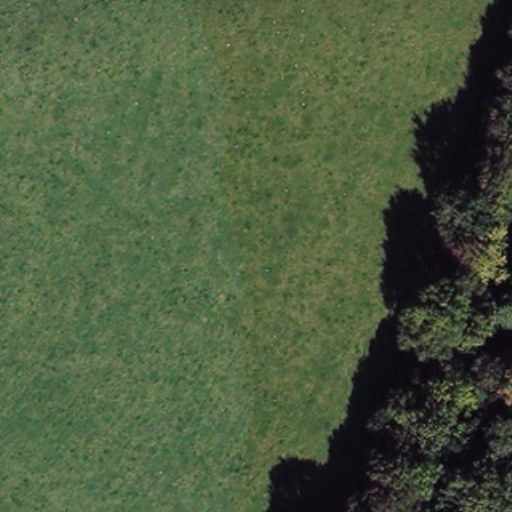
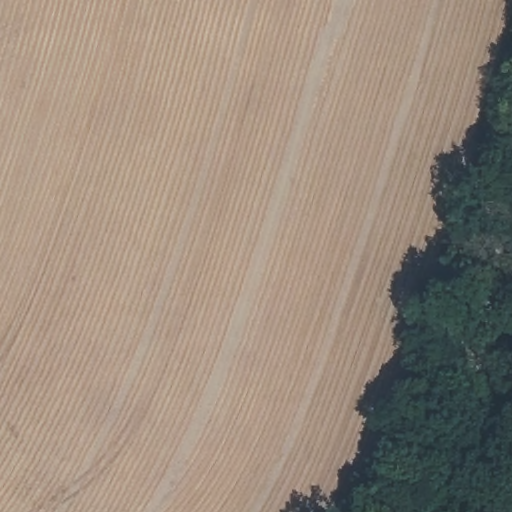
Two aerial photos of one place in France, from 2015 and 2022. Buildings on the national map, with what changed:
[]

